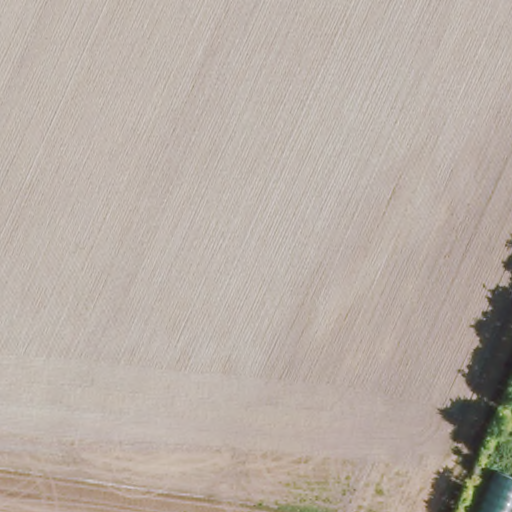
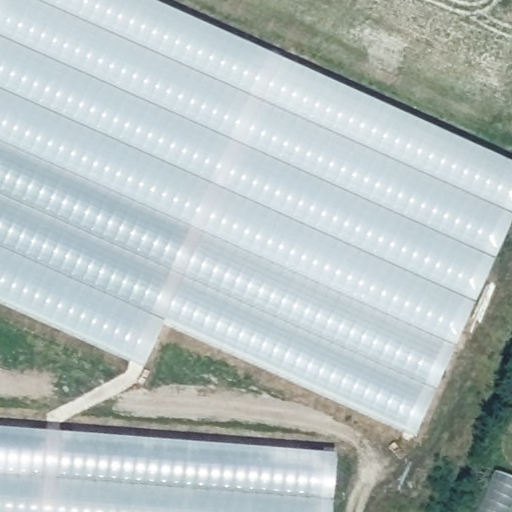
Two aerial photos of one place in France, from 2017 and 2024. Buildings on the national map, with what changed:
new [(512,210),(416,434),(162,319),(142,367),(0,302),(0,0),(150,0),(512,161),(512,210)]
new [(337,453),(332,512),(0,512),(0,429),(337,453)]
new [(512,507),(510,512),(477,512),(496,469),(512,476),(512,507)]

